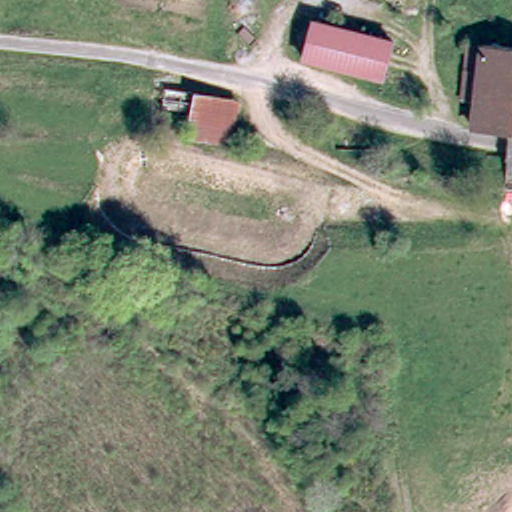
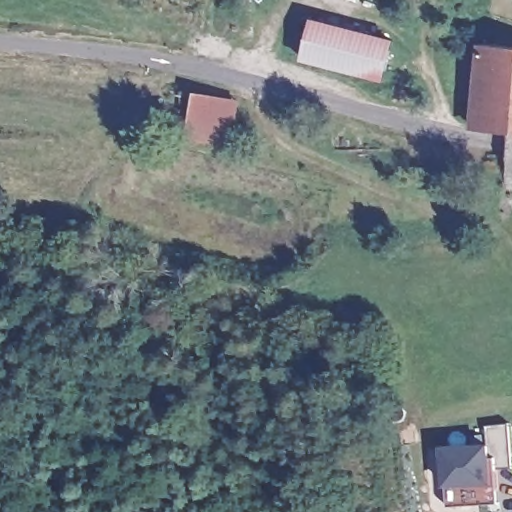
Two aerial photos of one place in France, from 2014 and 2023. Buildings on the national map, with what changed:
unchanged [(308,61),(317,21),(390,38),(383,76),(308,61)]
unchanged [(468,102),(474,103),(476,89),(462,87),(469,43),(512,49),(512,126),(466,119),(468,102)]
unchanged [(182,132),(186,111),(162,104),(167,77),(241,95),(233,143),(182,132)]
new [(443,444),(490,442),(489,425),(510,424),(512,457),(512,464),(497,465),(499,501),(449,504),(446,485),(443,444)]

